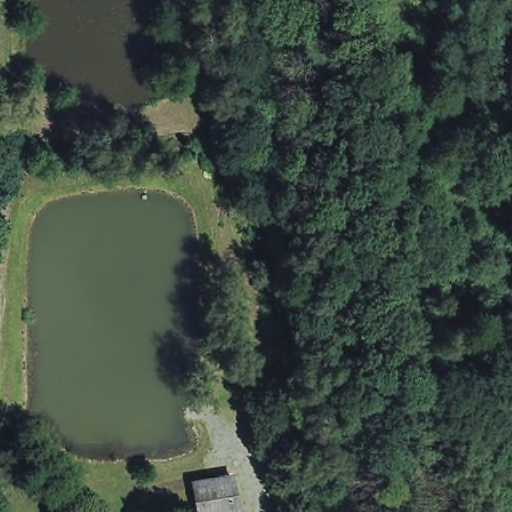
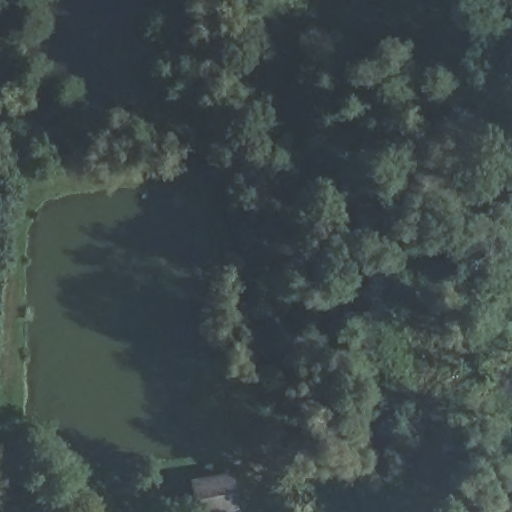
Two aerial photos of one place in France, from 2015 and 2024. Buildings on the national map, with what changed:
unchanged [(222,477),(226,507),(205,510),(198,511),(194,481),(210,479),(222,477)]

